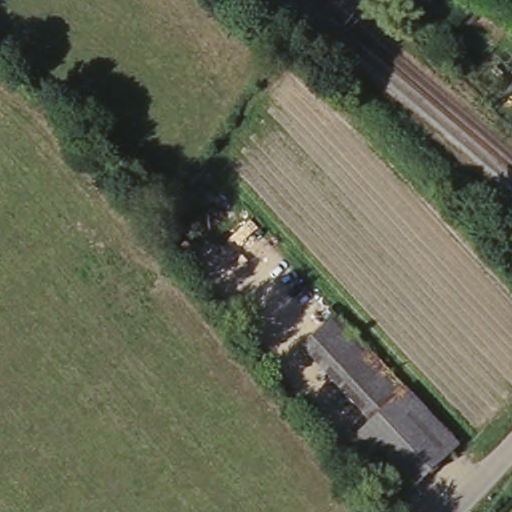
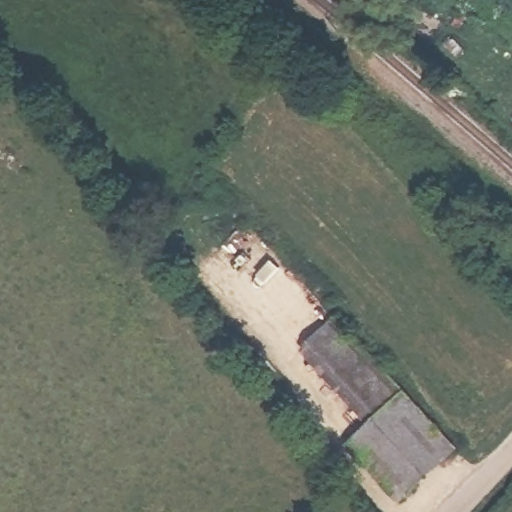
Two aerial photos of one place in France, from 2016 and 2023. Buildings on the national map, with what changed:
unchanged [(307,347),(339,315),(409,389),(377,420),(307,347)]
unchanged [(408,496),(356,440),(377,420),(409,389),(462,444),(408,496)]

